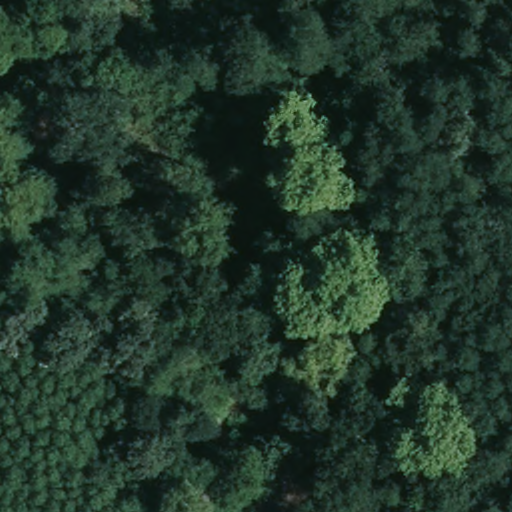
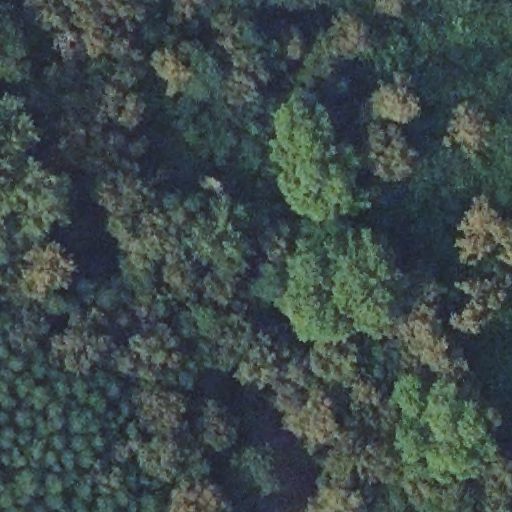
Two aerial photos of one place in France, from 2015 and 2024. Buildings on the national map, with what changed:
[]

